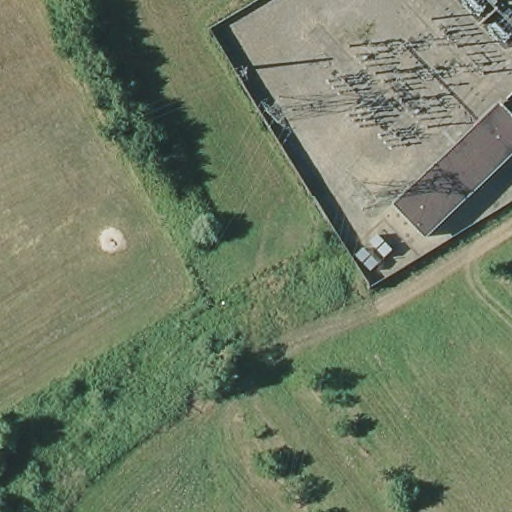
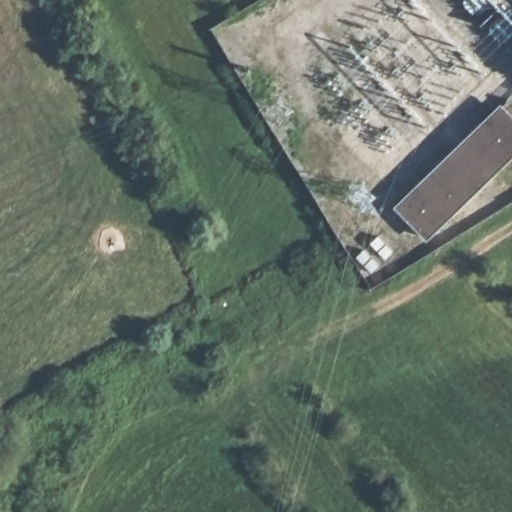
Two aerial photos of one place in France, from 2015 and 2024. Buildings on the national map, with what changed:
unchanged [(475,196),(429,241),(395,206),(409,193),(502,106),(512,115),(512,161),(475,196)]

